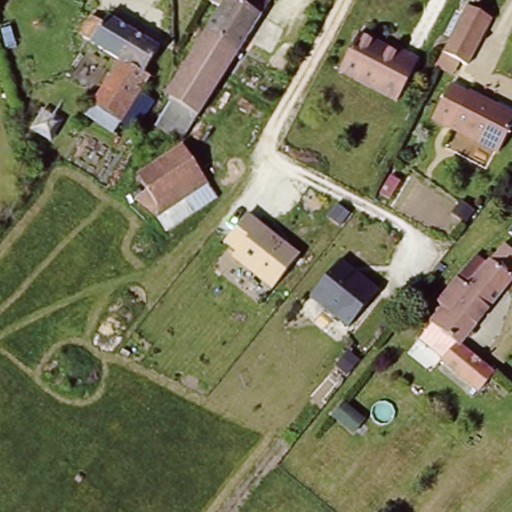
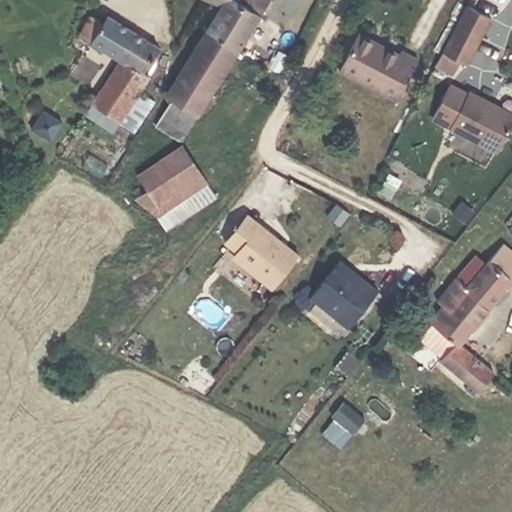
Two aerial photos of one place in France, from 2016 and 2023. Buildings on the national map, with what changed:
unchanged [(152,123),(168,100),(166,98),(174,75),(218,7),(223,0),(269,0),(194,117),(178,141),(152,123)]
unchanged [(201,0),(223,0),(218,7),(207,2),(201,0)]
unchanged [(436,67),(442,53),(467,4),(494,16),(468,66),(462,61),(455,75),(436,67)]
unchanged [(153,44),(164,58),(150,78),(146,76),(116,55),(76,28),(87,12),(98,20),(103,13),(153,44)]
unchanged [(339,70),(357,31),(396,49),(397,46),(418,55),(399,98),(339,70)]
unchanged [(109,133),(84,116),(110,75),(105,71),(116,55),(146,76),(109,133)]
unchanged [(490,147),(442,122),(460,87),(508,113),(490,147)]
unchanged [(132,198),(146,189),(137,174),(185,147),(194,162),(195,164),(152,218),(132,198)]
unchanged [(162,218),(200,168),(211,184),(162,218)]
unchanged [(301,255),(273,290),(233,258),(235,255),(224,243),(248,213),(301,255)]
unchanged [(476,391),(416,342),(430,325),(426,322),(438,307),(434,304),(450,283),(462,293),(488,261),(500,246),(512,256),(512,276),(509,279),(455,348),(489,375),(476,391)]
unchanged [(378,291),(348,327),(313,296),(342,260),(378,291)]

